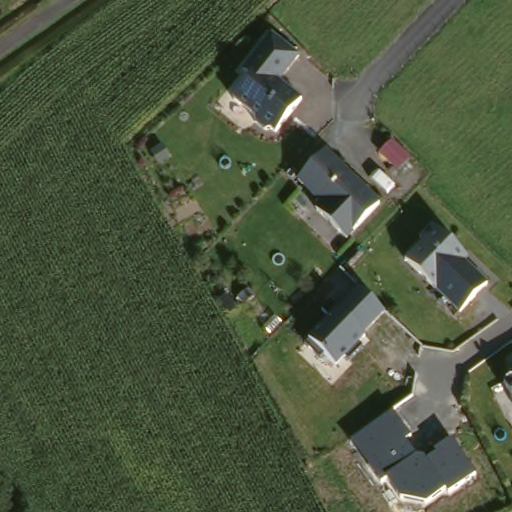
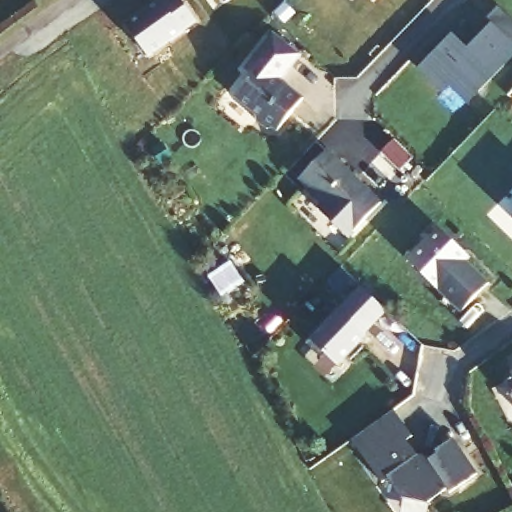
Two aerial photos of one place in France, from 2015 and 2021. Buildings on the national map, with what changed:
new [(162,4),(167,0),(180,0),(195,21),(147,56),(126,26),(161,2),(162,4)]
new [(512,18),(512,57),(467,104),(449,85),(442,94),(417,67),(450,34),(466,48),(489,24),(485,19),(497,5),(512,18)]
unchanged [(274,134),(269,130),(263,130),(254,122),(253,116),(233,100),(250,78),(243,72),(271,36),(297,57),(276,84),(283,90),(283,88),(300,101),(274,134)]
unchanged [(367,135),(377,125),(395,142),(385,153),(367,135)]
unchanged [(320,211),(324,207),(324,202),(300,180),(327,151),(382,205),(350,240),(320,211)]
new [(510,219),(512,216),(512,220),(510,219)]
unchanged [(463,311),(408,259),(426,240),(422,236),(435,222),(462,249),(470,256),(466,260),(490,282),(463,311)]
unchanged [(385,310),(365,332),(366,333),(359,342),(362,345),(348,358),(346,355),(337,365),(325,351),(320,356),(305,342),(309,337),(330,315),(325,310),(331,301),(340,306),(360,286),(385,310)]
unchanged [(502,381),(510,377),(507,372),(512,370),(512,399),(502,381)]
unchanged [(411,435),(405,438),(417,455),(425,455),(427,458),(427,459),(437,452),(435,449),(454,437),(477,472),(448,491),(445,486),(425,501),(399,495),(387,476),(380,481),(352,440),(393,412),(411,435)]

